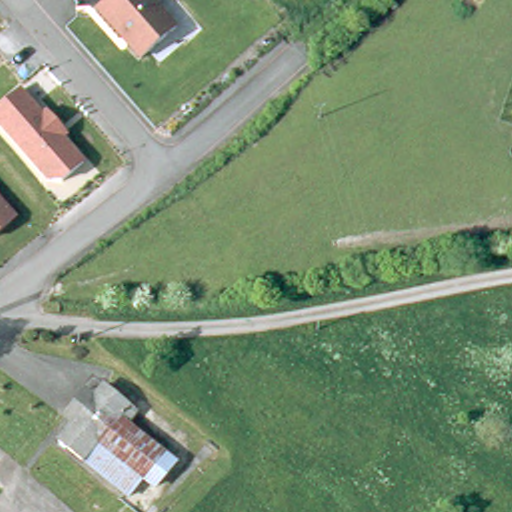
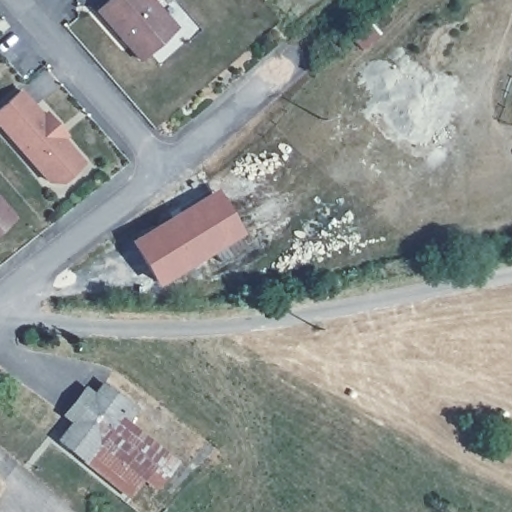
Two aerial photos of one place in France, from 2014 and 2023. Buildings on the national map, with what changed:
unchanged [(139,64),(129,51),(129,46),(124,40),(121,42),(96,14),(112,0),(148,0),(175,32),(139,64)]
unchanged [(47,111),(68,135),(65,139),(85,162),(64,182),(47,182),(0,129),(0,107),(21,89),(42,114),(47,111)]
new [(145,262),(147,261),(135,244),(216,192),(249,245),(222,261),(215,251),(160,285),(145,262)]
unchanged [(0,232),(0,198),(17,217),(0,232)]
unchanged [(139,412),(129,424),(177,463),(157,487),(147,478),(128,501),(59,445),(74,426),(63,418),(85,390),(96,399),(107,386),(139,412)]

